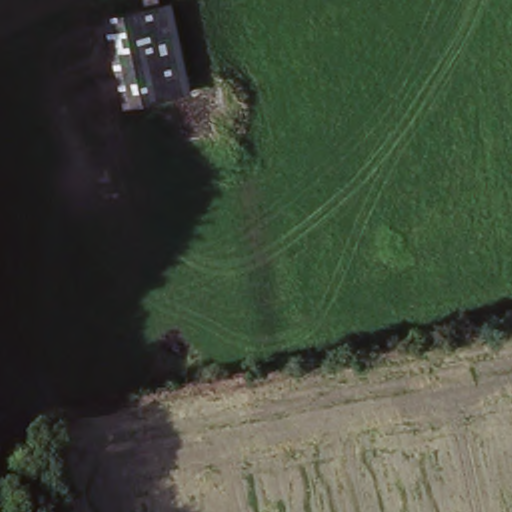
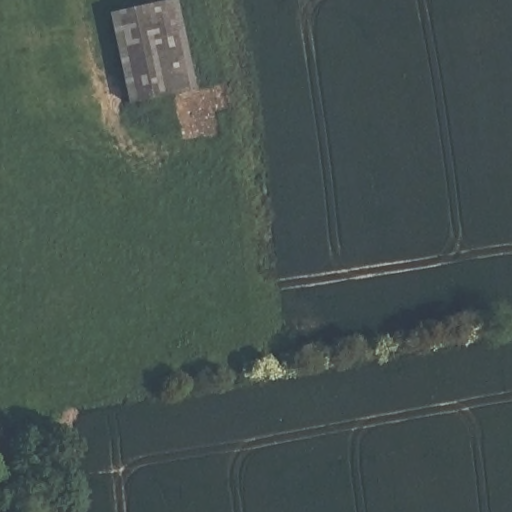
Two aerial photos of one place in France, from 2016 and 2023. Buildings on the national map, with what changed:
unchanged [(181,94),(114,98),(106,2),(132,0),(179,0),(181,94)]

